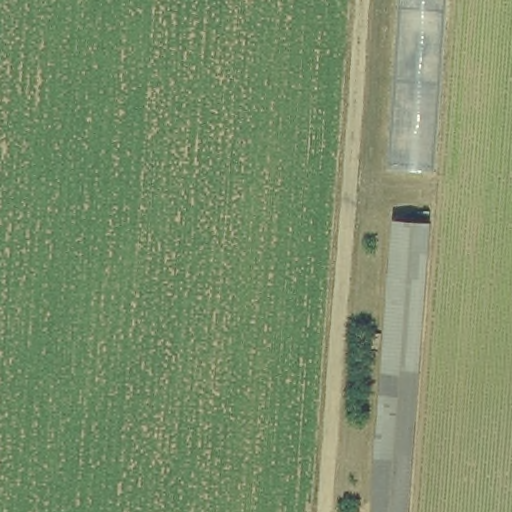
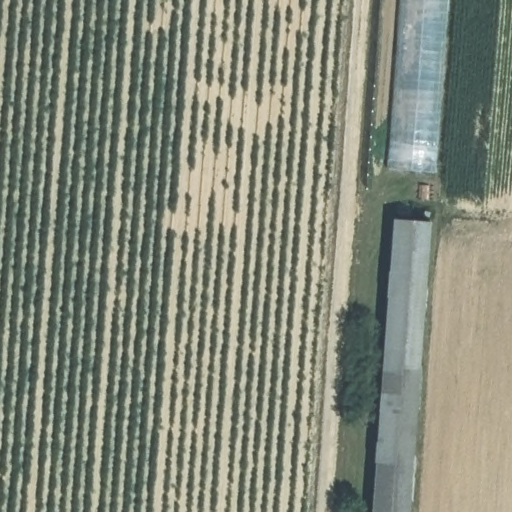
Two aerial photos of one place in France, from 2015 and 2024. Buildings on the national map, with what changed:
unchanged [(432,171),(384,169),(398,0),(447,0),(432,171)]
unchanged [(391,228),(430,229),(414,512),(376,512),(392,250),(391,228)]

